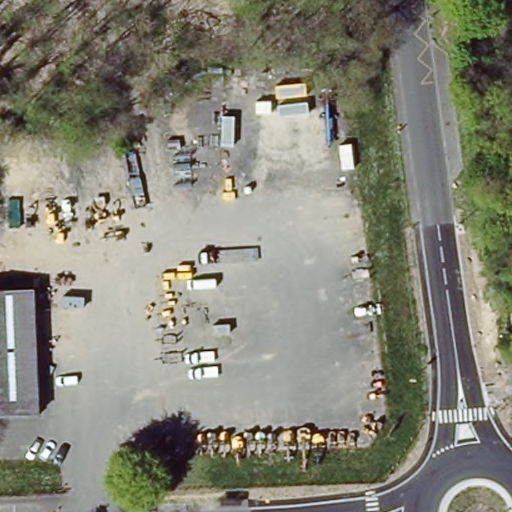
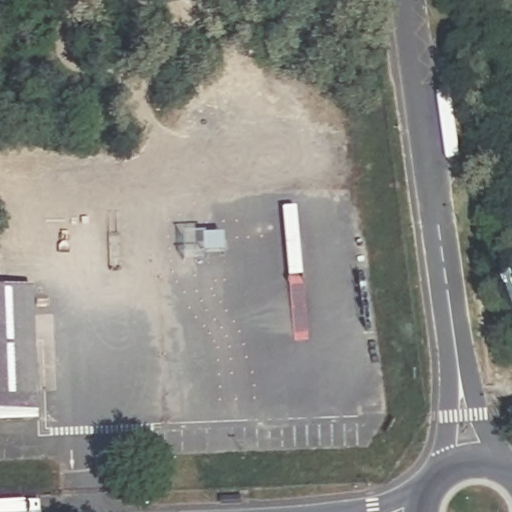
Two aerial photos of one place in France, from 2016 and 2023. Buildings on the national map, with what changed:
unchanged [(0,417),(0,292),(29,290),(32,415),(0,417)]

